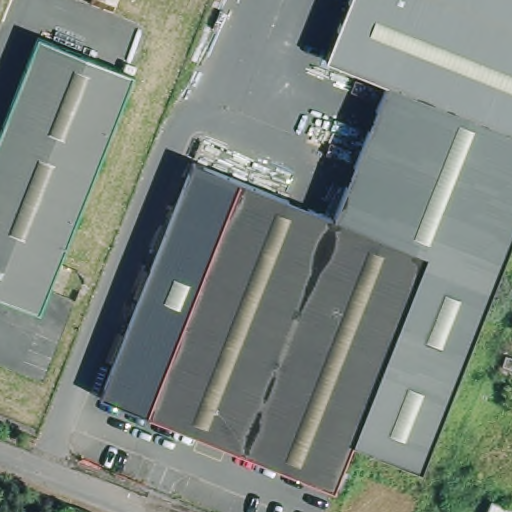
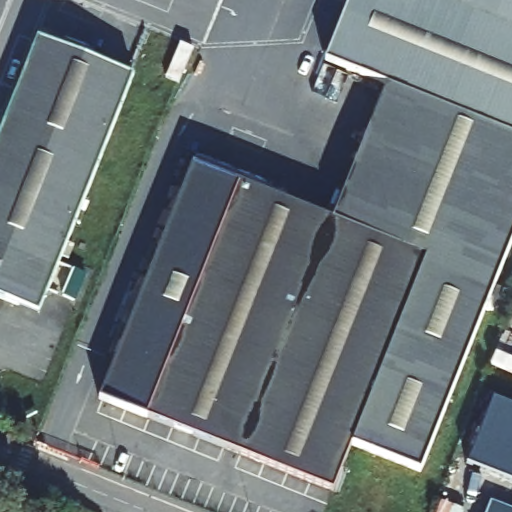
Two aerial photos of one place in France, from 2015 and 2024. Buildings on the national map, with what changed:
unchanged [(85,4),(87,0),(118,0),(113,15),(85,4)]
unchanged [(381,87),(320,62),(345,0),(512,0),(512,235),(417,476),(348,448),(330,495),(95,402),(189,166),(329,221),(381,87)]
unchanged [(36,42),(130,79),(37,315),(0,300),(0,136),(36,42)]
new [(493,402),(512,409),(512,484),(467,467),(493,402)]
unchanged [(496,500),(512,505),(512,512),(492,512),(496,500)]

